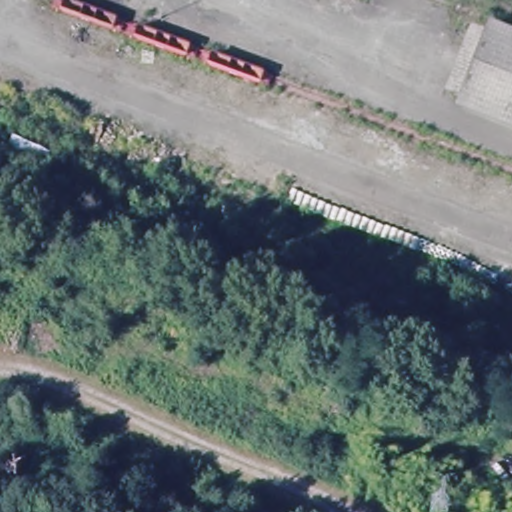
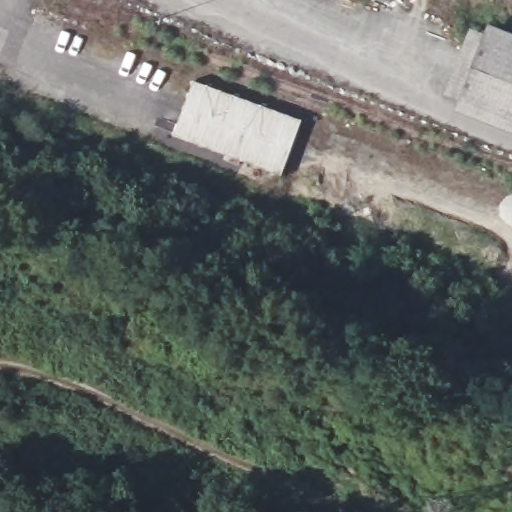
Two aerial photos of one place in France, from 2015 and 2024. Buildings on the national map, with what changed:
unchanged [(512,34),(512,123),(489,114),(460,102),(489,24),(493,26),(512,34)]
new [(193,80),(302,119),(281,174),(172,134),(193,80)]

